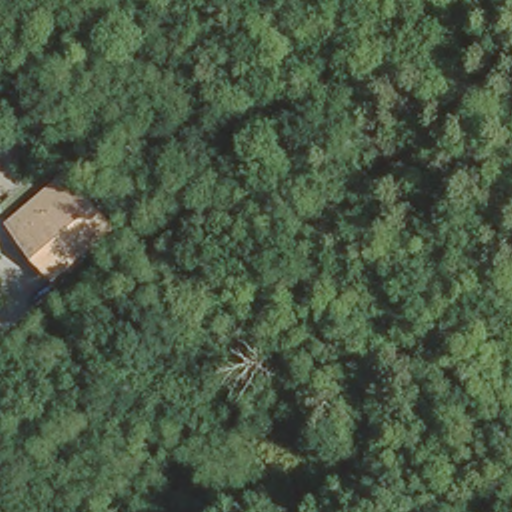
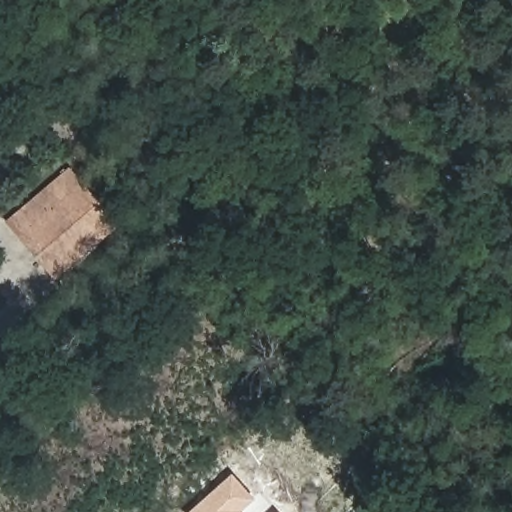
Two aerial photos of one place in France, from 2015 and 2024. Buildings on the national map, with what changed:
unchanged [(21,225),(12,214),(68,167),(77,179),(21,225)]
unchanged [(109,219),(54,266),(21,225),(77,179),(109,219)]
new [(253,499),(240,512),(189,512),(230,474),(253,499)]

